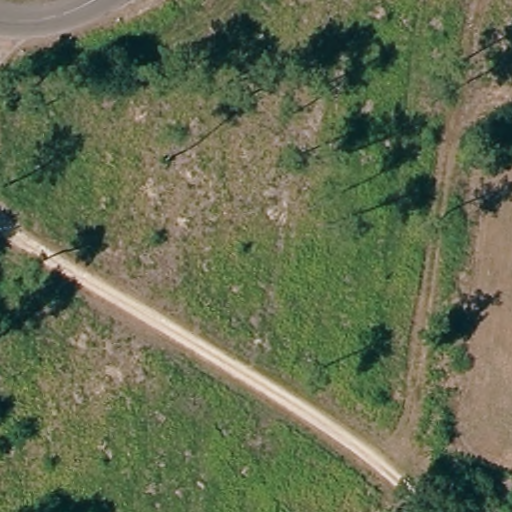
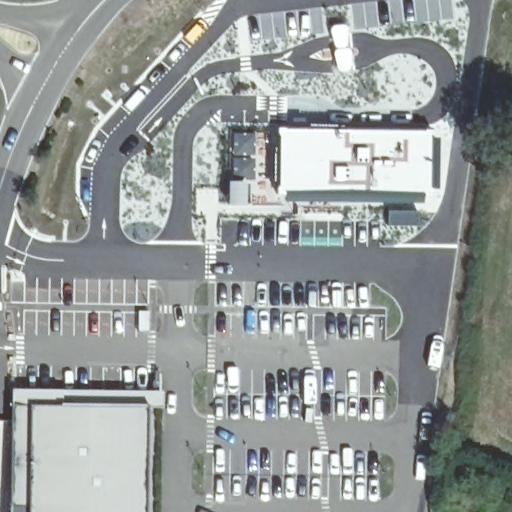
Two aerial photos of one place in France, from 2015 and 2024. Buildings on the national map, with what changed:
new [(322,127),(352,129),(433,132),(433,194),(348,192),(276,193),(276,127),(322,127)]
new [(249,181),(248,205),(228,205),(227,181),(249,181)]
new [(162,407),(147,406),(146,512),(28,512),(28,504),(11,504),(11,388),(163,389),(162,407)]

